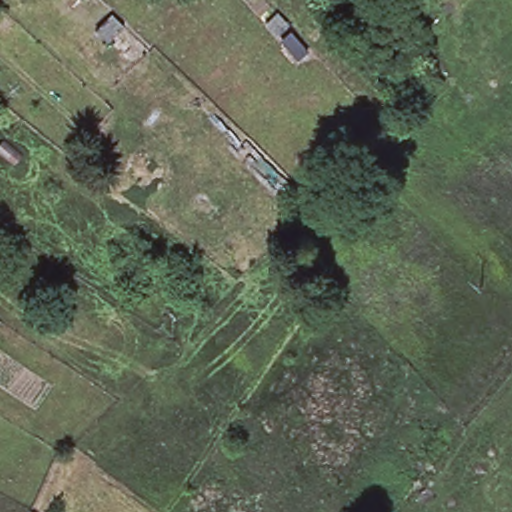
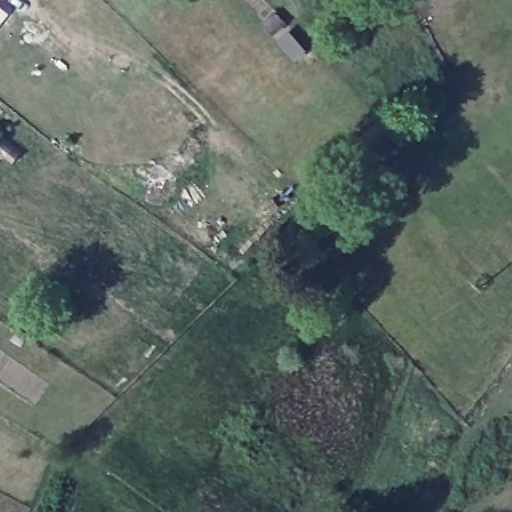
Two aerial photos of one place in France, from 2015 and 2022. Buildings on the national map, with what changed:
unchanged [(102,19),(94,12),(101,5),(123,25),(108,45),(91,29),(102,19)]

